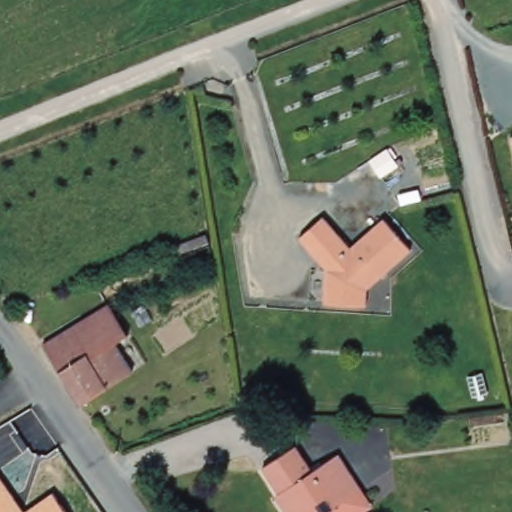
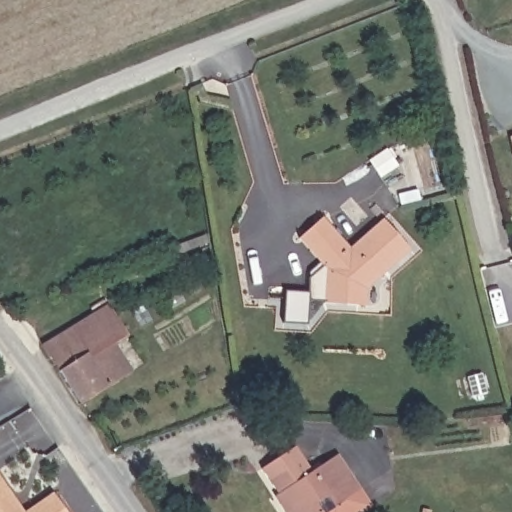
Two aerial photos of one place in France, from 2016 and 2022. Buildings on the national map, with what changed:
unchanged [(354,246),(386,219),(414,250),(370,288),(368,307),(323,302),(327,271),(300,239),(325,217),(354,246)]
unchanged [(112,324),(128,316),(139,333),(116,347),(133,372),(78,407),(35,340),(72,322),(76,320),(95,311),(102,307),(112,324)]
unchanged [(339,453),(363,490),(328,512),(286,512),(274,496),(277,492),(261,468),(297,447),(313,470),(339,453)]
unchanged [(0,512),(0,484),(20,512),(0,512)]
unchanged [(63,512),(22,512),(49,493),(63,512)]

